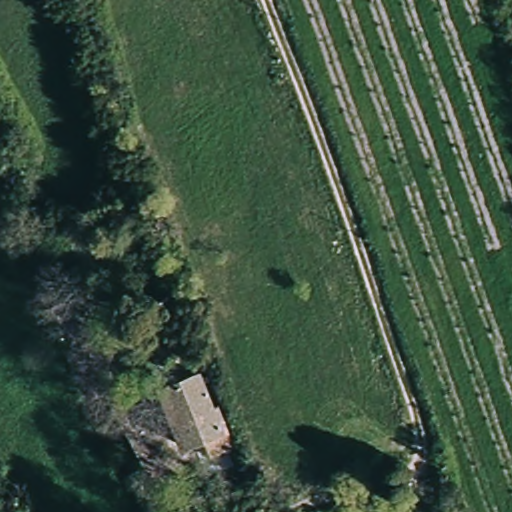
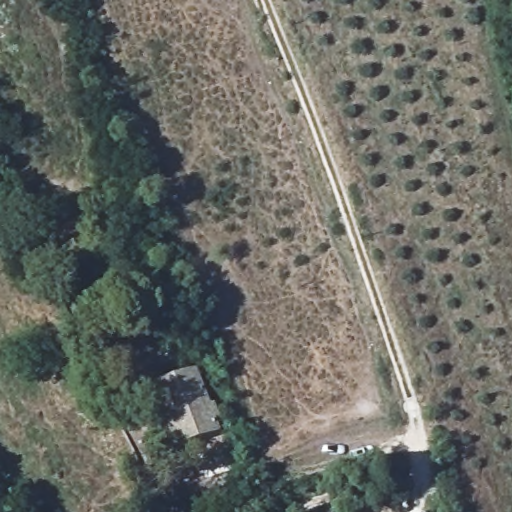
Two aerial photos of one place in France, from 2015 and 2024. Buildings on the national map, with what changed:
unchanged [(211,442),(209,434),(175,441),(162,381),(201,375),(215,428),(224,429),(226,438),(211,442)]

